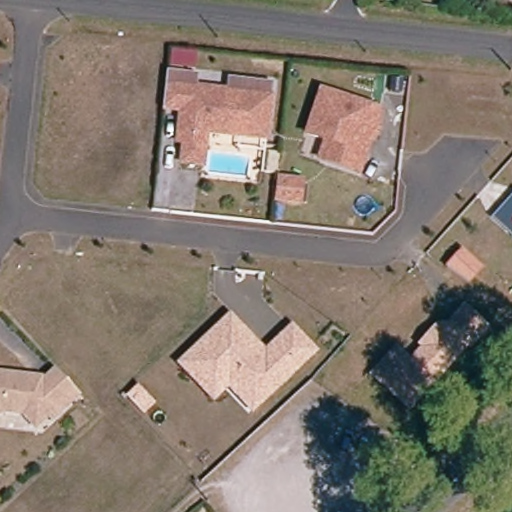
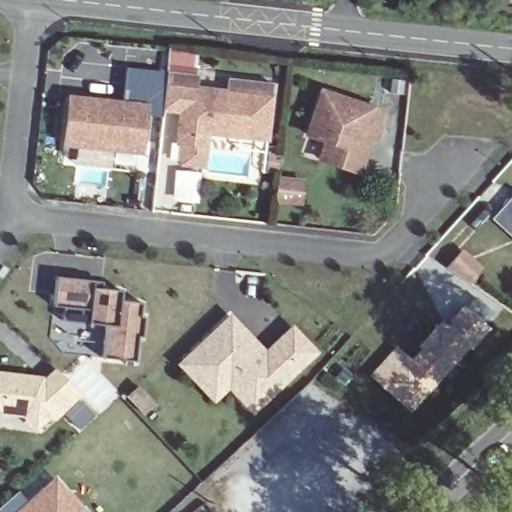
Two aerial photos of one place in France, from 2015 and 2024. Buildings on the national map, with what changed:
new [(148,111),(142,152),(62,144),(67,93),(123,99),(126,67),(168,71),(167,75),(165,93),(163,112),(148,111)]
unchanged [(203,169),(182,166),(184,147),(178,146),(180,125),(181,114),(163,112),(165,93),(167,75),(198,79),(196,92),(227,96),(229,82),(272,87),(266,142),(239,139),(206,135),(203,169)]
unchanged [(320,158),(327,140),(308,134),(322,91),(379,110),(365,153),(359,171),(320,158)]
unchanged [(282,179),(306,182),(304,202),(279,199),(282,179)]
unchanged [(512,204),(512,229),(499,218),(512,204)]
unchanged [(472,283),(467,280),(451,268),(463,251),(480,262),(484,265),(472,283)]
new [(97,279),(104,280),(103,287),(124,290),(123,300),(144,302),(142,316),(146,317),(143,337),(140,336),(136,361),(103,357),(107,325),(90,322),(64,319),(66,305),(55,304),(59,274),(97,279)]
unchanged [(445,344),(455,334),(454,325),(466,312),(488,332),(472,350),(469,347),(411,411),(375,377),(398,352),(413,366),(427,351),(439,338),(445,344)]
unchanged [(229,313),(263,348),(290,322),(317,351),(253,413),(228,387),(212,402),(176,363),(229,313)]
unchanged [(40,377),(43,380),(56,368),(71,384),(78,391),(53,414),(50,411),(34,425),(22,412),(1,415),(0,416),(0,377),(40,377)]
new [(87,512),(0,512),(0,507),(17,491),(26,501),(55,475),(87,512)]

